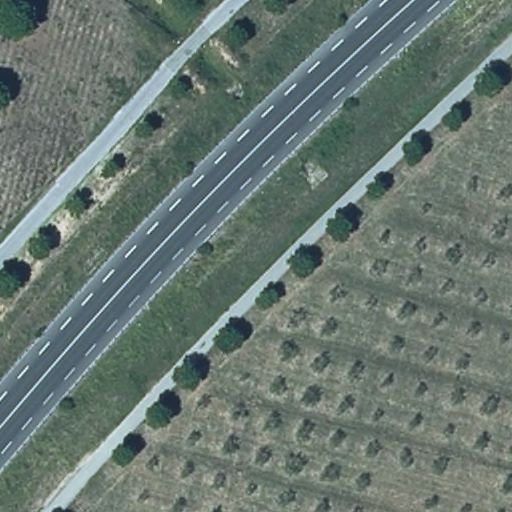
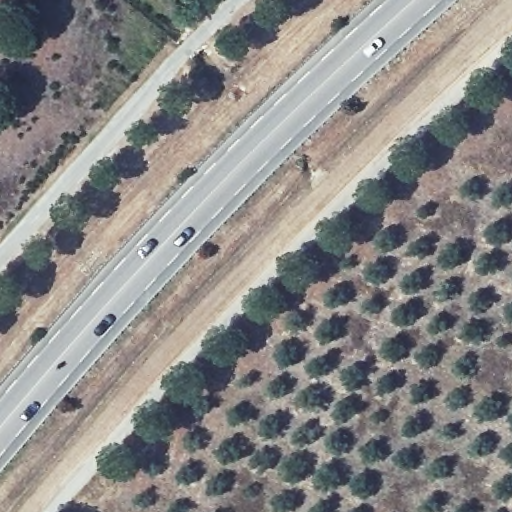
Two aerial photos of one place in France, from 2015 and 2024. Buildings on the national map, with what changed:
[]

